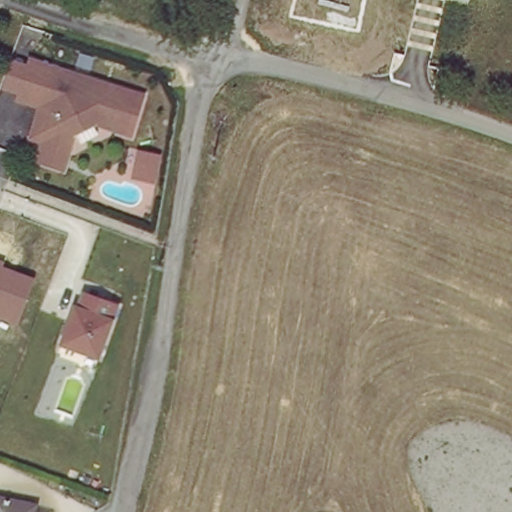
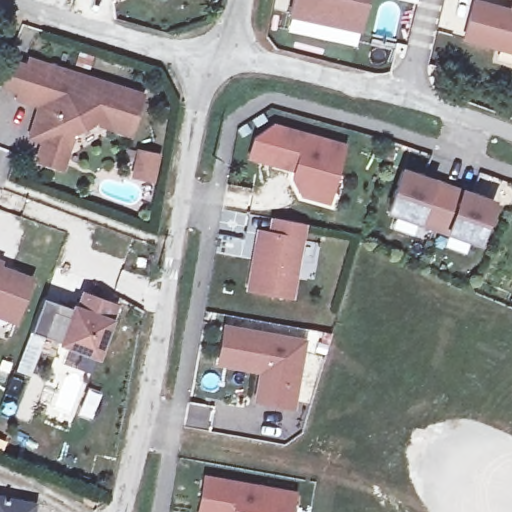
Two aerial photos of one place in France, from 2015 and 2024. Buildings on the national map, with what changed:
new [(359,0),(355,22),(287,7),(288,0),(359,0)]
new [(489,0),(497,2),(495,9),(505,12),(508,0),(512,0),(512,47),(460,32),(469,0),(489,0)]
unchanged [(142,95),(131,137),(95,123),(74,134),(64,168),(34,163),(40,146),(28,142),(37,106),(13,100),(27,61),(142,95)]
new [(305,187),(296,171),(298,162),(277,157),(287,122),(347,138),(334,184),(331,195),(305,187)]
new [(421,215),(416,229),(395,221),(400,207),(390,204),(405,164),(495,196),(481,236),(472,233),(468,247),(447,239),(452,226),(421,215)]
new [(262,225),(274,227),(277,211),(307,217),(294,289),(252,282),(262,225)]
unchanged [(2,263),(36,275),(18,324),(0,318),(0,257),(3,258),(2,263)]
unchanged [(116,322),(102,361),(58,342),(73,303),(81,307),(85,292),(122,305),(116,322)]
new [(295,401),(259,394),(264,365),(236,360),(221,357),(228,321),(242,323),(306,335),(295,401)]
new [(201,511),(208,472),(297,487),(292,512),(207,512),(201,511)]
unchanged [(31,512),(0,512),(0,501),(32,506),(31,512)]

